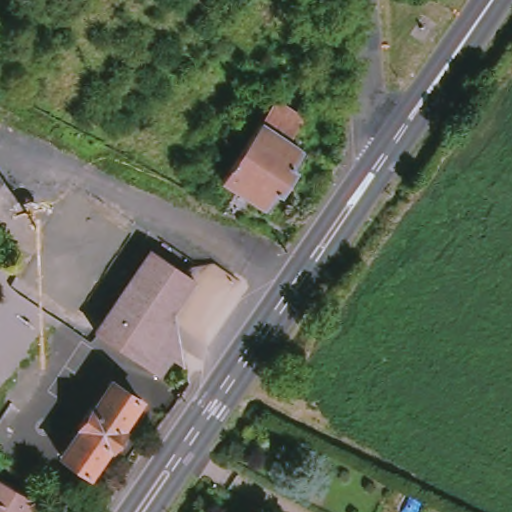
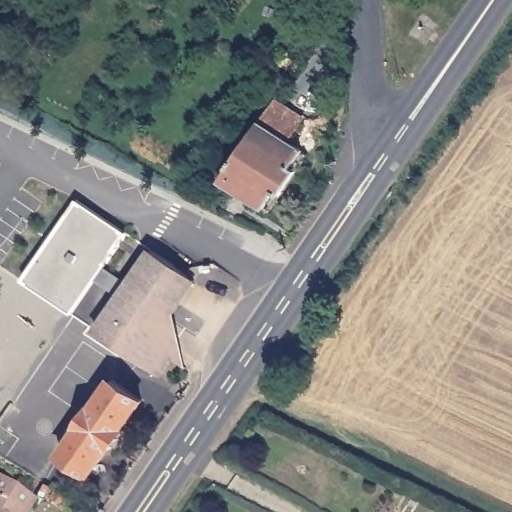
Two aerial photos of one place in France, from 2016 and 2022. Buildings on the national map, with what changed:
unchanged [(223,175),(265,119),(305,149),(264,204),(223,175)]
new [(23,280),(78,200),(126,232),(71,313),(23,280)]
unchanged [(127,360),(88,333),(94,325),(144,250),(151,254),(177,271),(193,265),(194,278),(164,316),(169,325),(161,336),(175,348),(156,373),(151,381),(127,360)]
unchanged [(42,375),(51,381),(24,420),(15,415),(42,375)]
unchanged [(59,451),(105,382),(136,402),(88,471),(59,451)]
unchanged [(0,482),(32,501),(26,512),(0,512),(0,482)]

